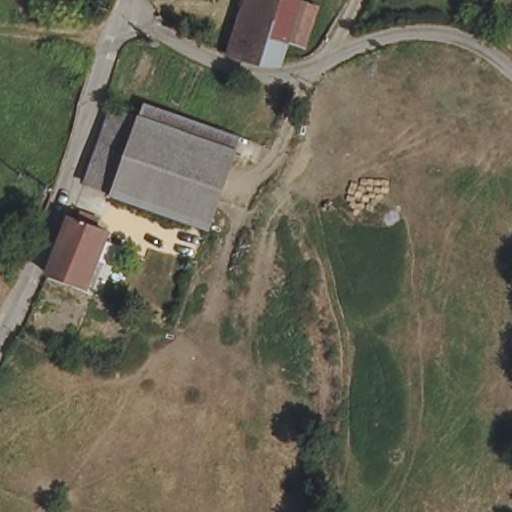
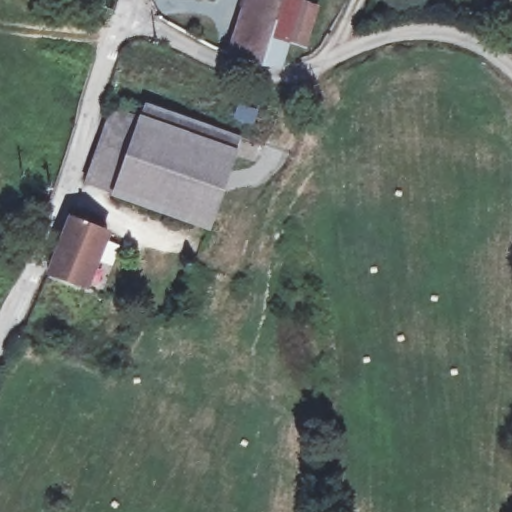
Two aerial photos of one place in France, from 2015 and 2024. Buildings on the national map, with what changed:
unchanged [(306,46),(290,41),(281,67),(267,70),(240,62),(228,57),(242,11),(250,0),(302,0),(301,1),(320,7),(306,46)]
unchanged [(229,152),(206,226),(87,186),(108,114),(229,152)]
unchanged [(81,212),(97,219),(93,227),(105,232),(85,287),(46,272),(71,217),(77,220),(81,212)]

